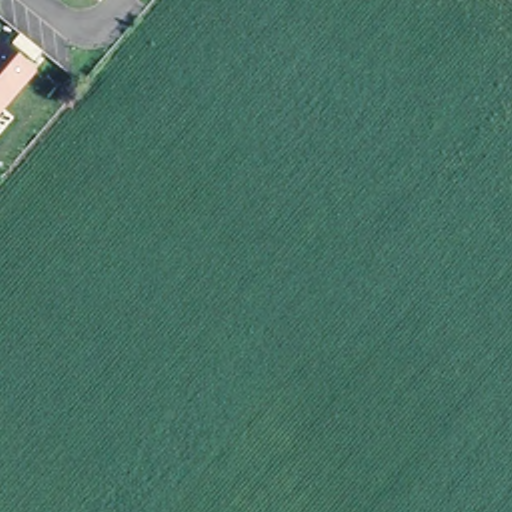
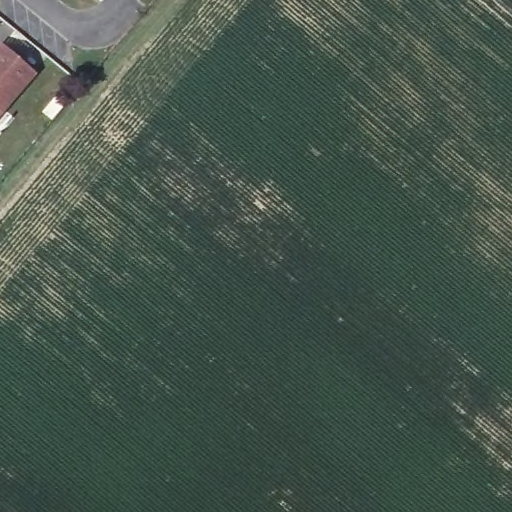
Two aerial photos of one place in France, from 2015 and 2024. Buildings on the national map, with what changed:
unchanged [(0,109),(0,45),(32,72),(0,109)]

